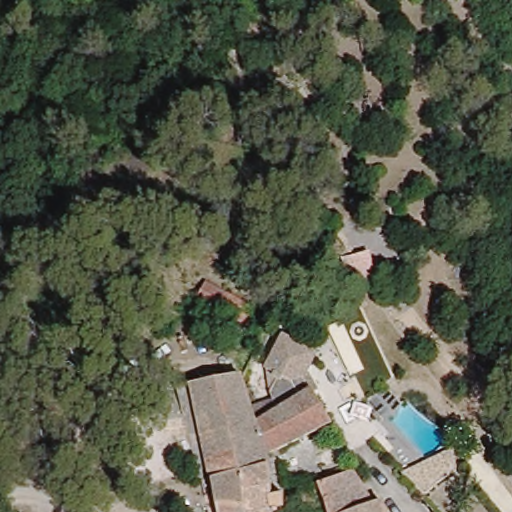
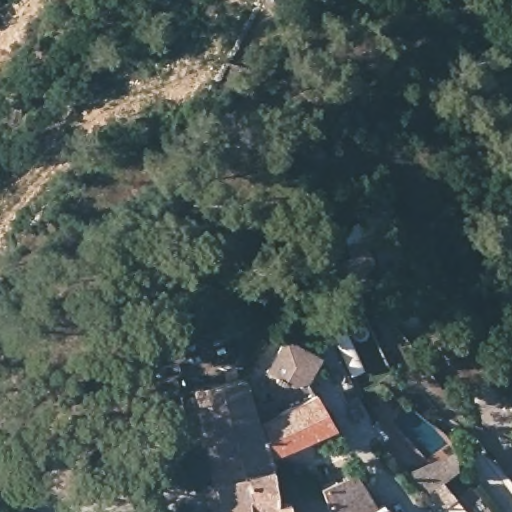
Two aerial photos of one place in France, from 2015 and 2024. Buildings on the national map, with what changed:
unchanged [(341,268),(338,243),(355,239),(357,249),(360,261),(341,268)]
unchanged [(204,280),(260,304),(253,320),(197,296),(204,280)]
unchanged [(298,401),(294,392),(275,400),(268,386),(265,362),(283,337),(317,359),(305,379),(315,394),(298,401)]
unchanged [(242,379),(260,418),(275,453),(279,455),(275,462),(280,503),(286,504),(287,512),(222,512),(192,390),(242,379)]
unchanged [(335,426),(279,455),(275,453),(260,418),(266,415),(262,406),(275,400),(294,392),(298,401),(315,394),(335,426)]
unchanged [(455,449),(465,468),(428,497),(406,474),(455,449)]
unchanged [(330,508),(323,471),(355,459),(378,490),(387,491),(395,512),(335,512),(335,508),(330,508)]
unchanged [(293,512),(300,509),(301,512),(293,512)]

